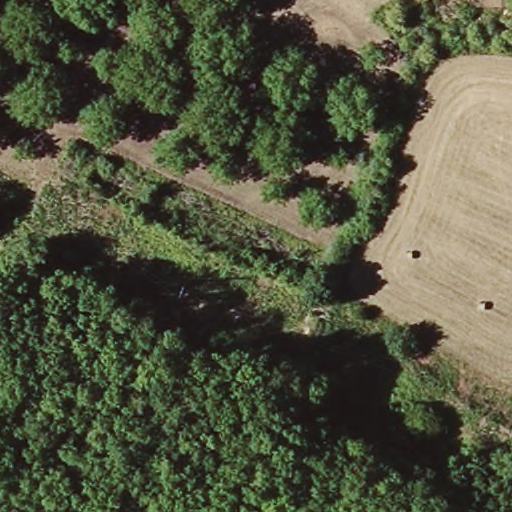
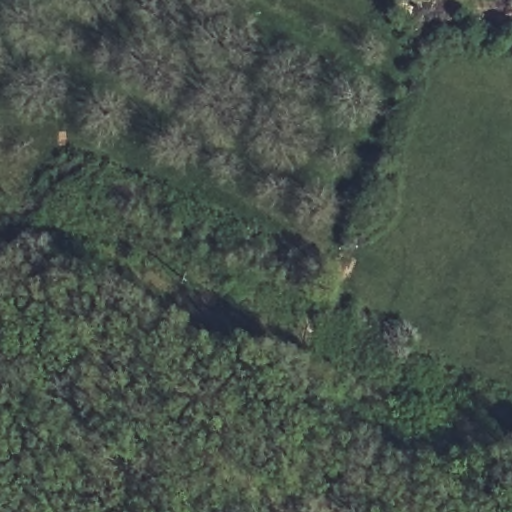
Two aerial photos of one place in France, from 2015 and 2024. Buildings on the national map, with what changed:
[]

